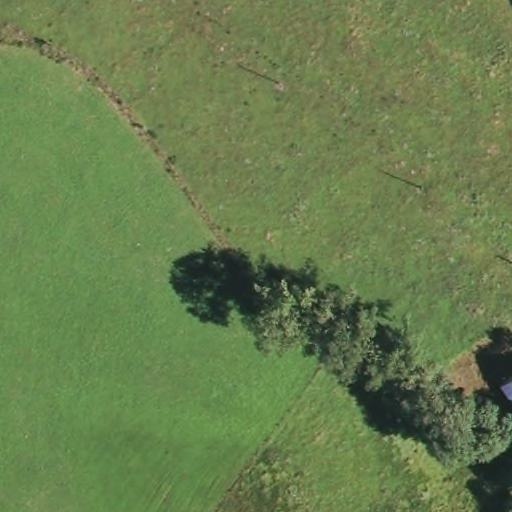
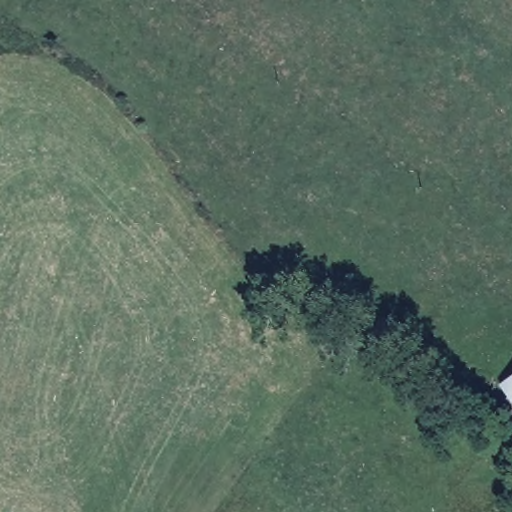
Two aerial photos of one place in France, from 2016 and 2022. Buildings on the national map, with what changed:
unchanged [(512,365),(512,401),(495,380),(512,365)]

